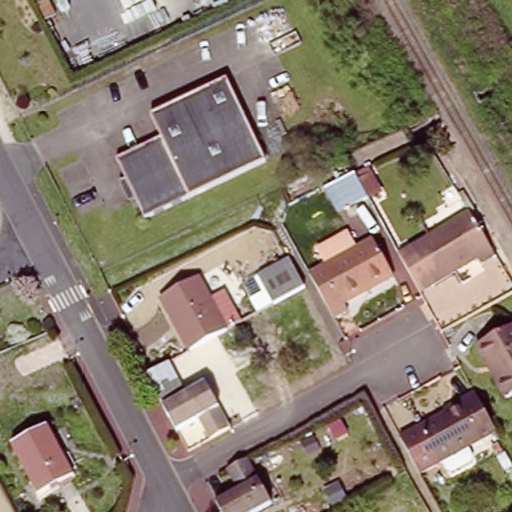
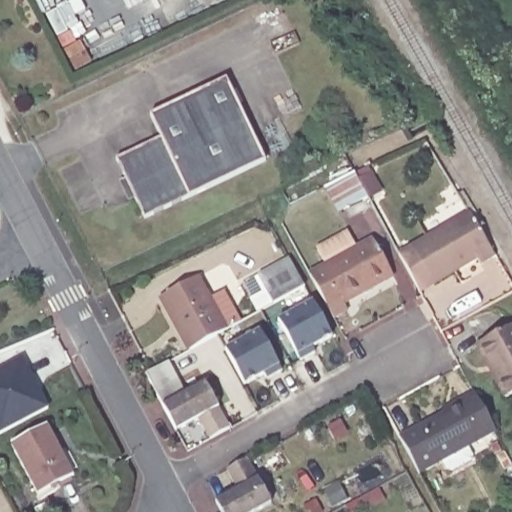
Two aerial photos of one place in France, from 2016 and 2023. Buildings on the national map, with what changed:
unchanged [(225,83),(265,163),(143,222),(115,164),(122,160),(135,154),(160,141),(150,118),(225,83)]
unchanged [(355,174),(357,172),(360,174),(372,197),(350,209),(335,183),(355,174)]
unchanged [(466,223),(492,266),(475,274),(472,267),(432,288),(422,294),(413,299),(394,264),(414,252),(466,223)]
unchanged [(372,239),(392,275),(371,287),(379,300),(351,315),(347,308),(333,315),(310,273),(372,239)]
unchanged [(294,258),(307,284),(309,287),(306,288),(277,304),(262,275),(294,258)]
unchanged [(197,282),(209,304),(222,296),(239,327),(190,354),(160,302),(197,282)]
new [(317,348),(320,352),(300,362),(277,321),(315,301),(336,335),(317,348)]
new [(269,381),(265,374),(245,385),(227,350),(260,330),(286,369),(269,381)]
unchanged [(512,331),(512,398),(506,402),(497,384),(478,349),(484,347),(512,331)]
new [(23,359),(37,386),(37,388),(40,393),(42,394),(50,409),(0,434),(0,371),(23,359)]
unchanged [(207,385),(231,431),(211,442),(200,421),(176,434),(165,412),(164,408),(162,406),(148,382),(147,380),(145,378),(149,376),(167,366),(185,397),(207,385)]
unchanged [(500,425),(472,441),(477,451),(475,456),(456,467),(451,464),(445,456),(425,467),(419,458),(405,433),(450,409),(447,405),(465,396),(480,388),(500,425)]
unchanged [(44,428),(70,476),(35,494),(9,446),(44,428)]
unchanged [(272,504),(258,512),(219,512),(214,503),(239,491),(228,471),(247,461),(272,504)]

